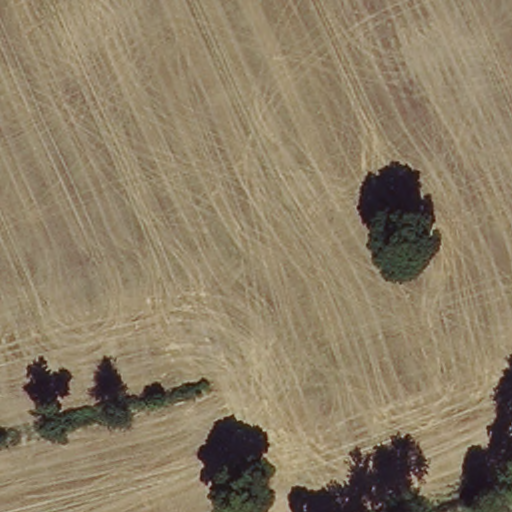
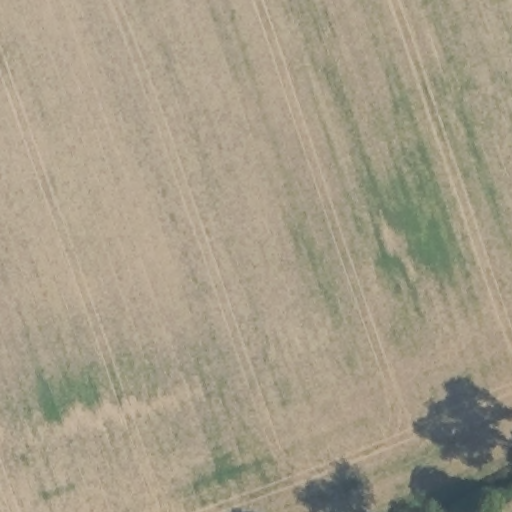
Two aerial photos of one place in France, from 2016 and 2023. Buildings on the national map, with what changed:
[]

